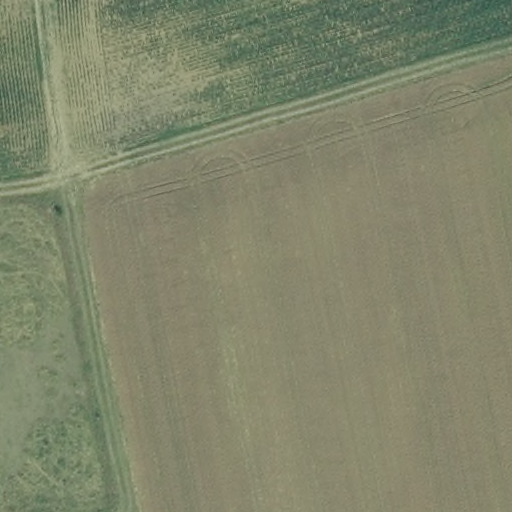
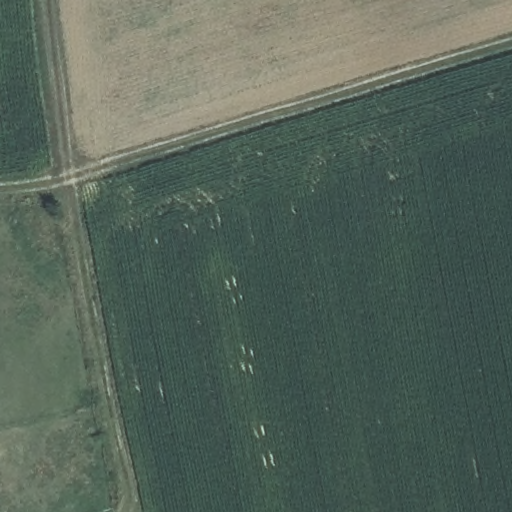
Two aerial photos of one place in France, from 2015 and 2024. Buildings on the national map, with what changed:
[]

